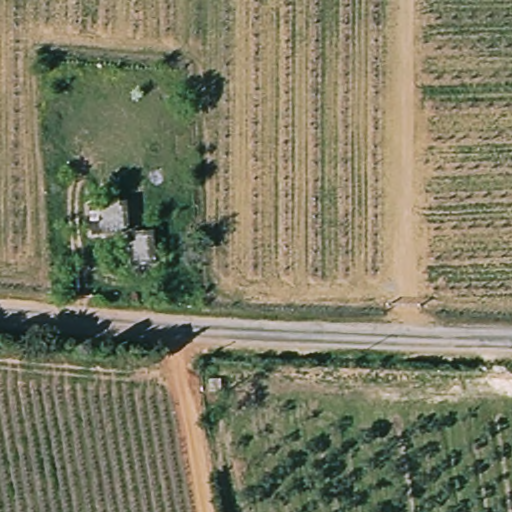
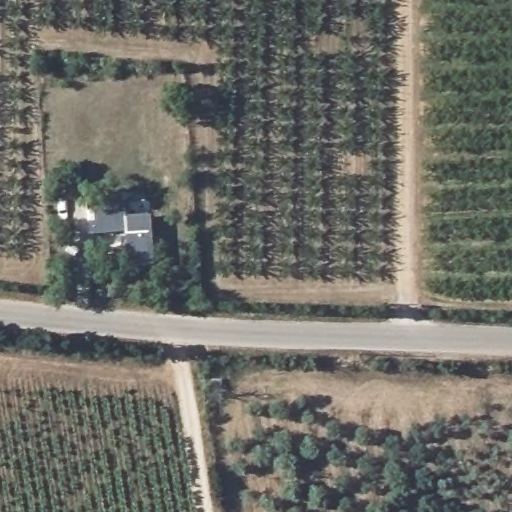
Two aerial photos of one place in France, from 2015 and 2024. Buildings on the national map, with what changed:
unchanged [(127,232),(92,234),(91,205),(125,204),(127,232)]
unchanged [(125,270),(123,240),(149,239),(151,269),(125,270)]

